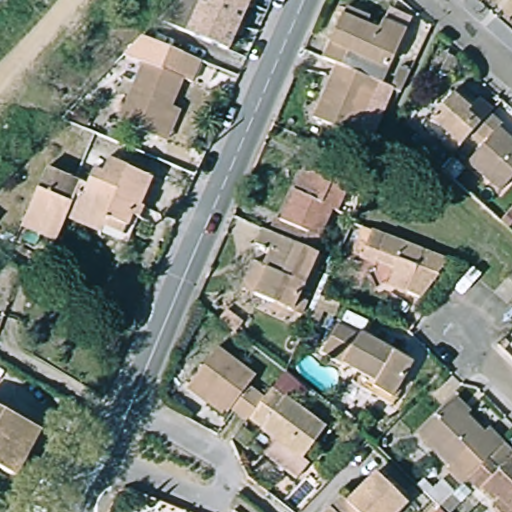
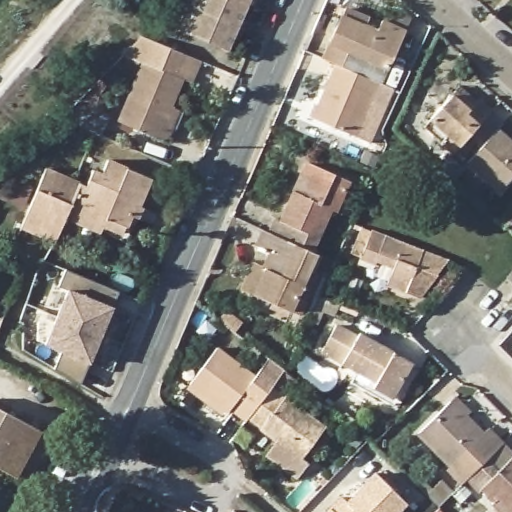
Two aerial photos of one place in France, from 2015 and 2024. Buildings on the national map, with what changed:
unchanged [(256,0),(234,52),(163,21),(183,0),(256,0)]
unchanged [(336,66),(330,63),(323,60),(346,9),(369,19),(366,26),(378,31),(382,21),(406,32),(382,86),(378,84),(336,66)]
unchanged [(166,143),(158,140),(118,122),(143,63),(153,67),(162,45),(179,51),(201,61),(192,83),(184,80),(172,108),(180,111),(166,143)]
unchanged [(378,84),(354,136),(313,119),(336,66),(378,84)]
unchanged [(401,68),(410,72),(401,92),(400,94),(391,90),(401,68)]
unchanged [(424,128),(460,86),(477,101),(479,99),(492,111),(489,115),(486,118),(479,126),(472,134),(470,136),(454,155),(424,128)]
unchanged [(499,131),(512,143),(512,179),(500,193),(467,164),(482,146),(470,136),(472,134),(479,126),(486,118),(489,115),(502,126),(499,131)]
unchanged [(46,169),(77,182),(78,178),(88,182),(93,171),(102,175),(108,161),(152,179),(140,207),(143,209),(138,219),(131,216),(123,235),(104,227),(101,233),(66,218),(56,242),(21,228),(46,169)]
unchanged [(281,224),(286,226),(310,173),(312,170),(313,169),(314,169),(316,170),(355,188),(341,218),(337,216),(318,258),(301,251),(274,239),(281,224)]
unchanged [(415,247),(453,262),(424,299),(392,286),(399,269),(382,262),(381,265),(357,255),(368,228),(415,247)]
unchanged [(274,239),(301,251),(318,258),(322,261),(303,304),(312,308),(306,322),(247,296),(260,268),(268,272),(275,258),(261,251),(267,236),(274,239)]
new [(67,290),(59,287),(66,270),(119,292),(108,320),(112,322),(100,352),(95,350),(81,385),(55,370),(62,352),(45,344),(67,290)]
unchanged [(512,273),(512,283),(507,279),(512,273)]
unchanged [(358,343),(359,340),(411,369),(391,405),(373,394),(376,388),(322,358),(336,331),(358,343)]
unchanged [(192,389),(195,385),(222,349),(260,378),(253,388),(269,400),(267,402),(261,411),(255,418),(254,419),(252,422),(236,410),(233,414),(230,411),(227,416),(192,389)]
unchanged [(255,418),(261,411),(267,402),(269,400),(276,390),(289,400),(290,399),(330,429),(307,461),(266,430),(267,429),(254,419),(255,418)]
unchanged [(452,470),(455,467),(423,434),(457,402),(460,398),(476,414),(472,417),(488,434),(494,429),(509,445),(473,480),(467,486),(452,470)]
unchanged [(2,468),(0,466),(0,407),(46,432),(21,478),(2,468)]
unchanged [(498,505),(500,503),(487,490),(485,492),(473,480),(509,445),(512,448),(512,512),(504,512),(498,505)]
unchanged [(2,468),(0,471),(0,466),(2,468)]
unchanged [(412,504),(404,512),(333,512),(347,498),(352,503),(381,474),(412,504)]

